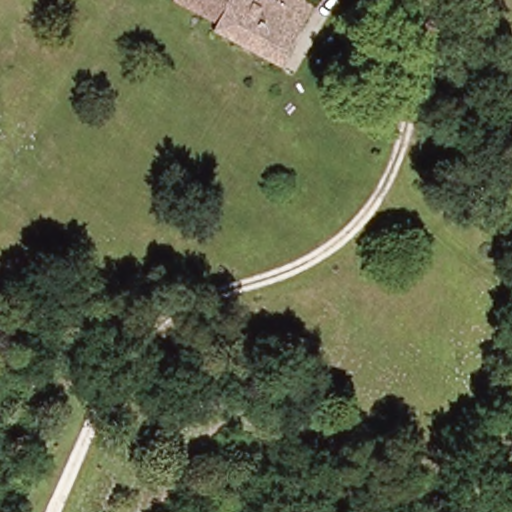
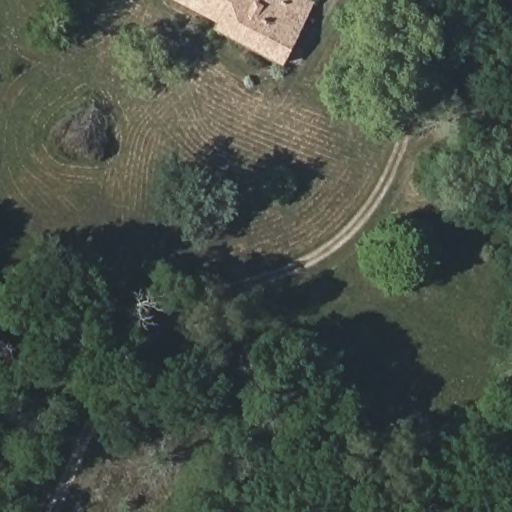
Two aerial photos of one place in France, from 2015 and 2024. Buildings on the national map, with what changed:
unchanged [(282,58),(264,48),(218,24),(221,17),(192,1),(191,0),(310,0),(295,31),(293,35),(282,58)]

